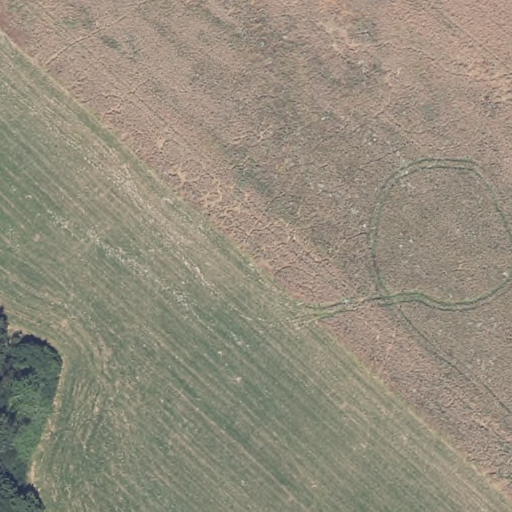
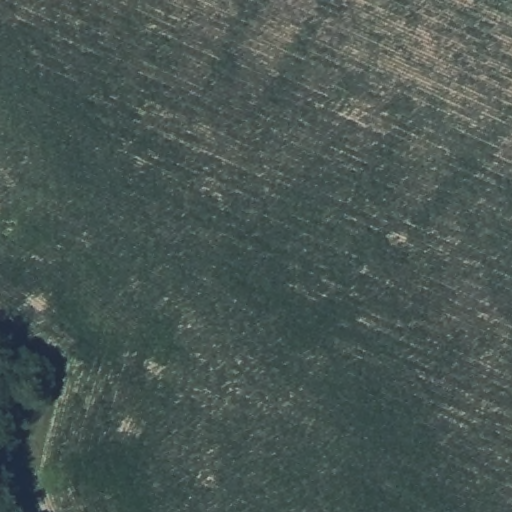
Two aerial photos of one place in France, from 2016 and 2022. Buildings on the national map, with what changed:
[]

